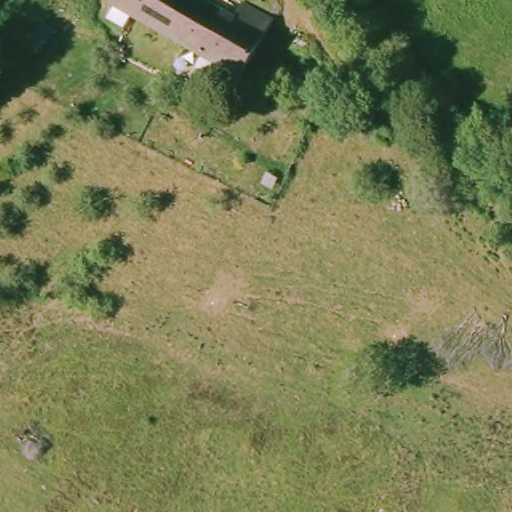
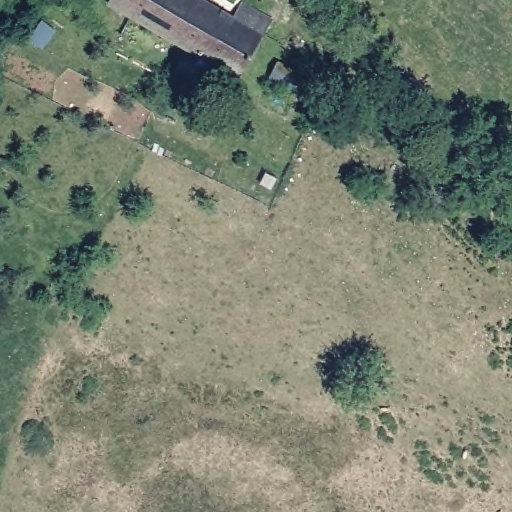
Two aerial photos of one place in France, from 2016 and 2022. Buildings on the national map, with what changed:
unchanged [(105,2),(106,0),(203,0),(230,15),(238,2),(267,19),(235,76),(105,2)]
unchanged [(325,94),(307,86),(312,73),(330,79),(325,94)]

